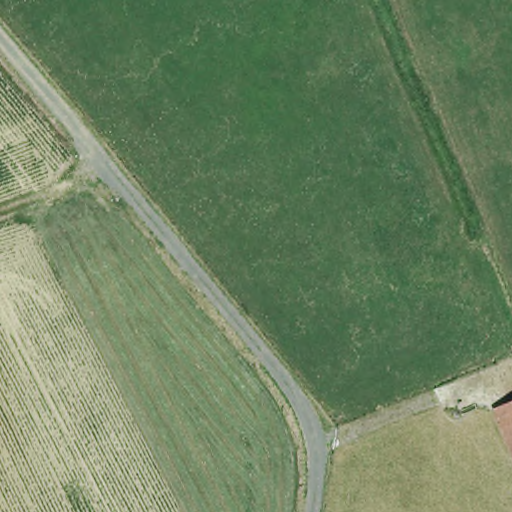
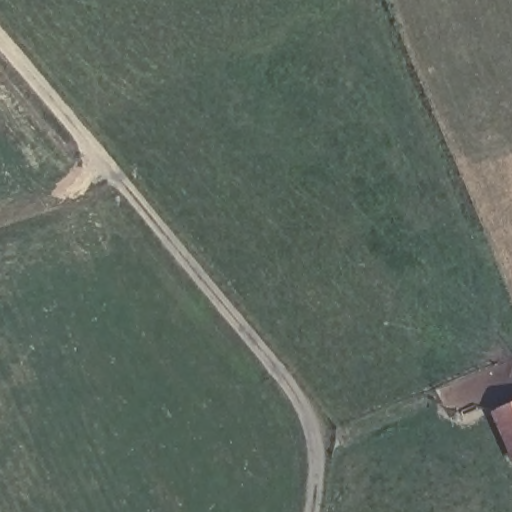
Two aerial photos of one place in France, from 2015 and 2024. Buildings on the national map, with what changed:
unchanged [(490,410),(512,402),(512,462),(490,410)]

